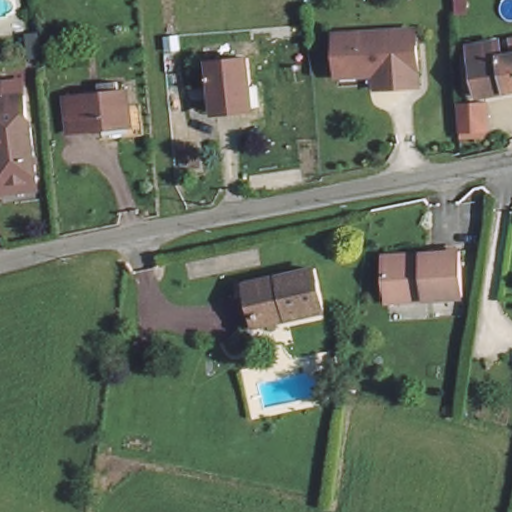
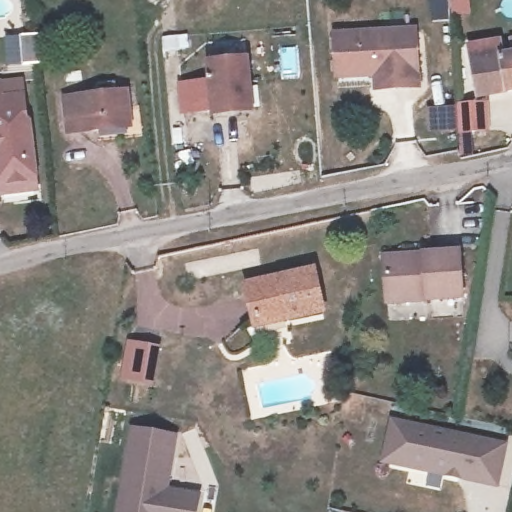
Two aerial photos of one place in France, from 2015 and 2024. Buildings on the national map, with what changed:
unchanged [(368,73),(368,77),(336,76),(335,34),(390,32),(398,32),(416,31),(416,47),(418,87),(401,88),(390,88),(375,89),(375,73),(368,73)]
unchanged [(475,95),(471,40),(504,39),(506,58),(512,57),(512,91),(475,95)]
unchanged [(254,110),(216,114),(210,61),(249,57),(254,110)]
unchanged [(26,96),(28,130),(32,130),(35,182),(0,186),(0,82),(3,81),(3,95),(26,96)]
unchanged [(126,128),(64,136),(60,97),(120,91),(126,128)]
unchanged [(480,103),(480,131),(451,131),(450,103),(480,103)]
unchanged [(391,300),(387,255),(462,247),(466,293),(391,300)]
unchanged [(246,281),(315,269),(324,309),(282,317),(253,323),(251,310),(246,281)]
new [(390,417),(509,443),(500,488),(380,463),(390,417)]
new [(178,434),(170,487),(204,493),(200,512),(117,512),(130,426),(178,434)]

